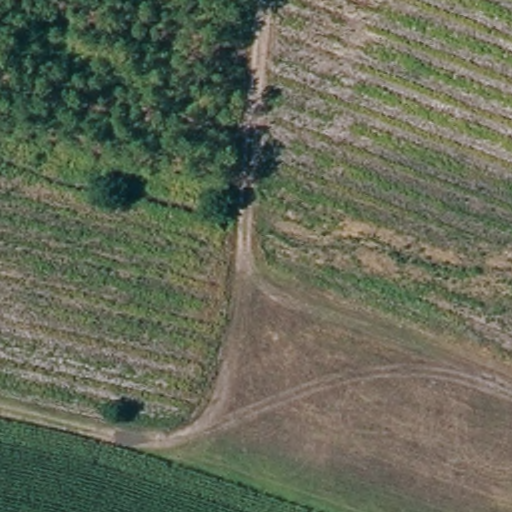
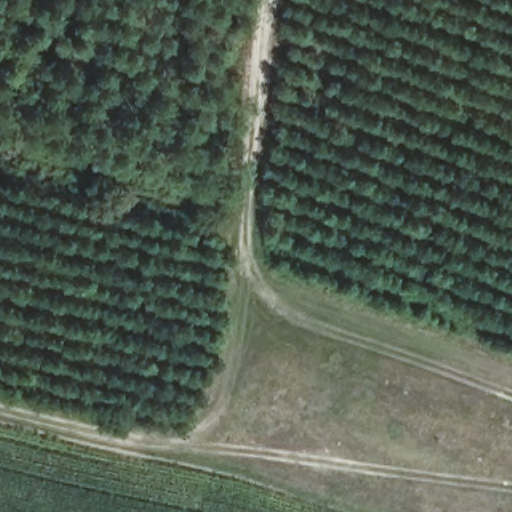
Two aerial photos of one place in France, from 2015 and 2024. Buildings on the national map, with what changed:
[]

